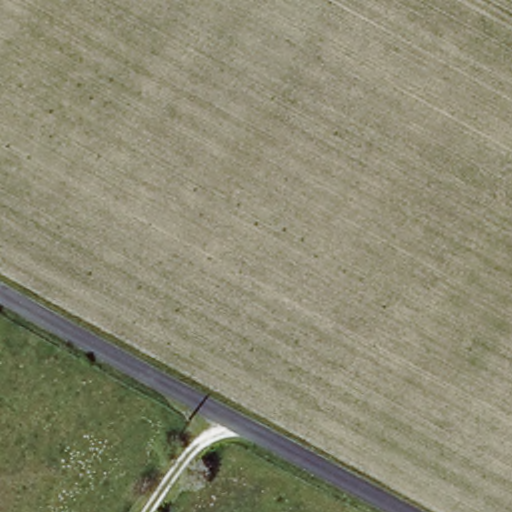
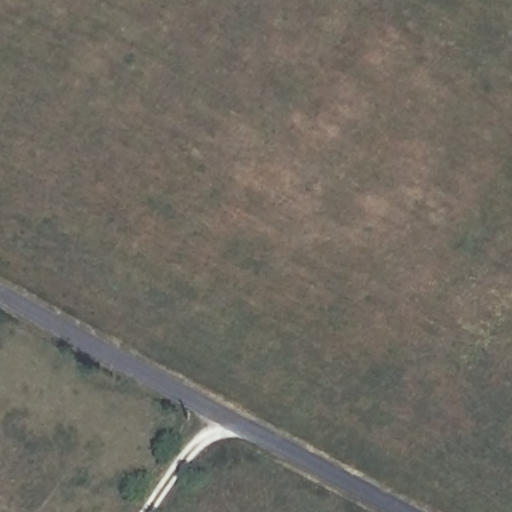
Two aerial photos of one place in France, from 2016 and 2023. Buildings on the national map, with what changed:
[]

